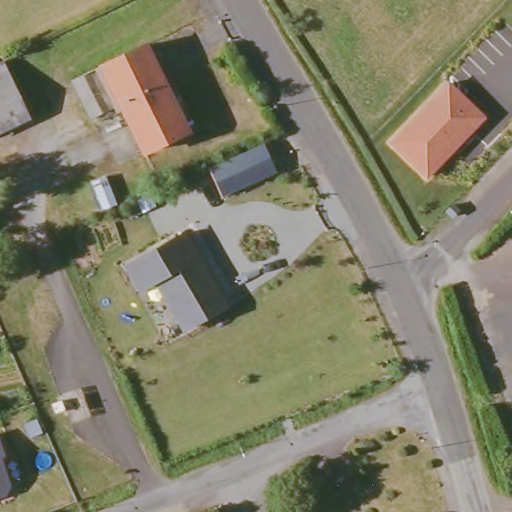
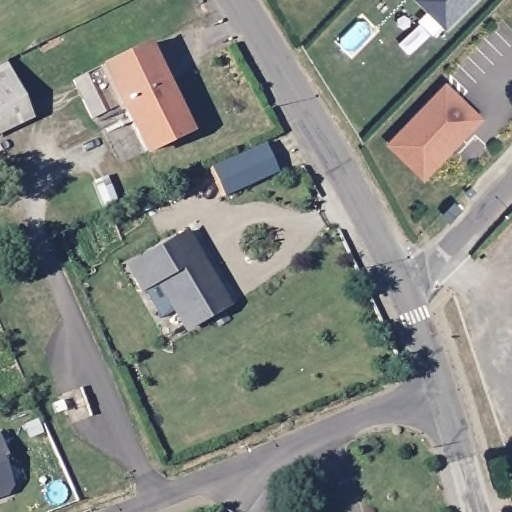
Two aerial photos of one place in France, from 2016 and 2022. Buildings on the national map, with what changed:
new [(447,27),(420,0),(475,0),(447,27)]
unchanged [(148,152),(122,105),(103,115),(85,77),(145,43),(192,129),(148,152)]
unchanged [(31,121),(0,136),(0,67),(6,64),(31,121)]
unchanged [(447,82),(486,117),(427,178),(387,143),(447,82)]
unchanged [(209,168),(264,143),(279,174),(222,197),(209,168)]
unchanged [(191,236),(227,310),(185,330),(161,281),(146,289),(133,263),(191,236)]
unchanged [(0,456),(0,446),(3,455),(0,456)]
unchanged [(5,493),(0,495),(0,458),(10,482),(5,493)]

